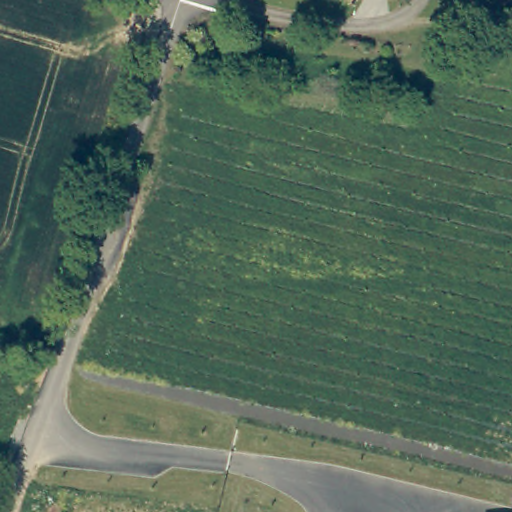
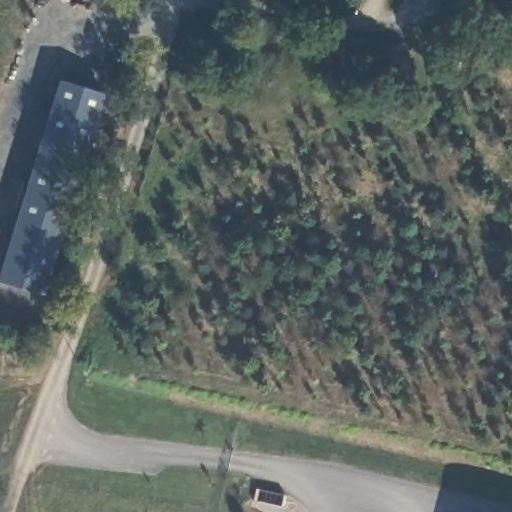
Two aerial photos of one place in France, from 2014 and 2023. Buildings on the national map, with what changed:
new [(104,90),(44,293),(0,280),(0,278),(60,78),(104,90)]

